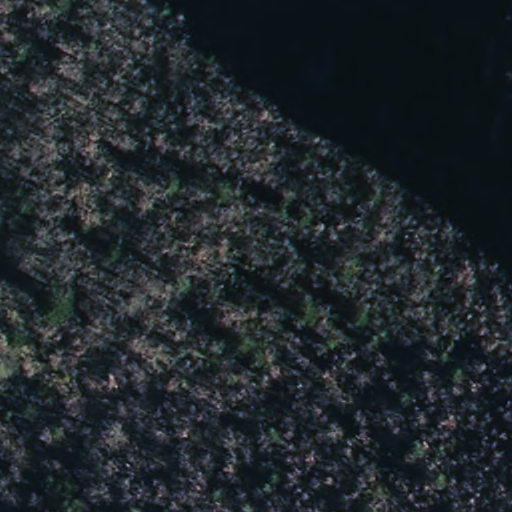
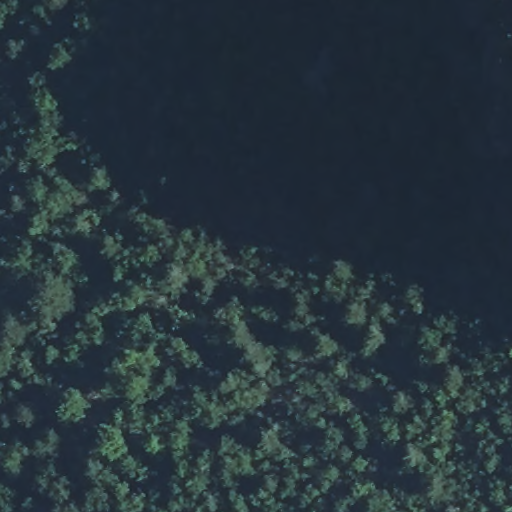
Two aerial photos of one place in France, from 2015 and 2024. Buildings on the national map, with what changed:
[]

